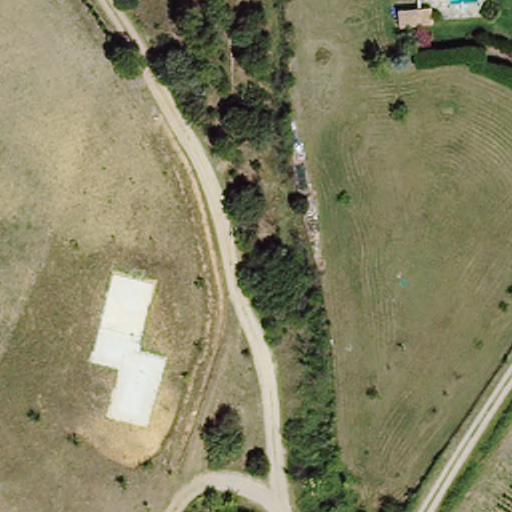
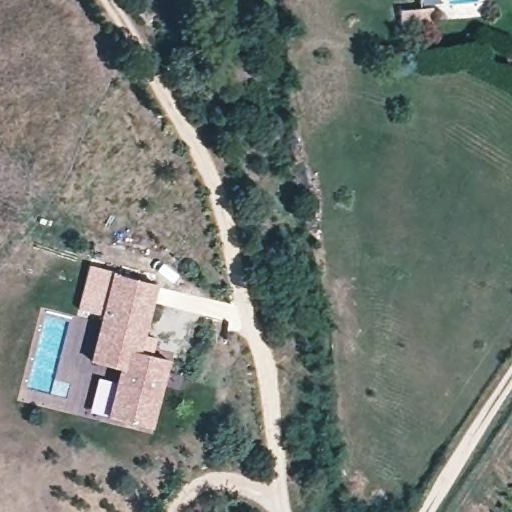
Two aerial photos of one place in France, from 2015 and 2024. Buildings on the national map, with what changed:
unchanged [(437,9),(437,30),(404,32),(400,11),(437,9)]
new [(114,272),(155,283),(139,351),(165,357),(148,427),(105,416),(117,368),(92,362),(114,272)]

